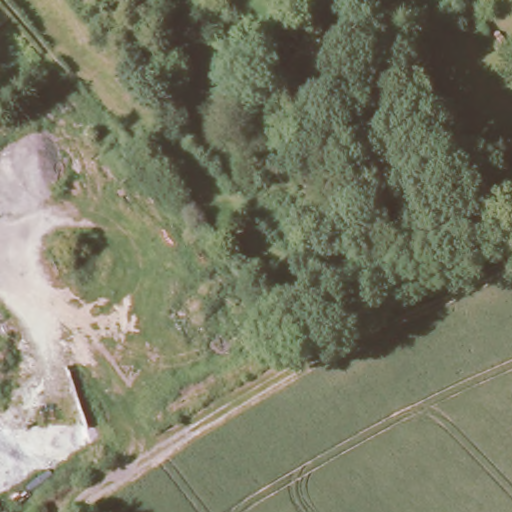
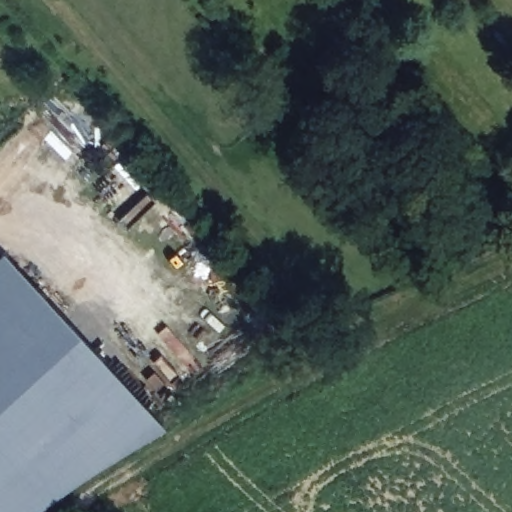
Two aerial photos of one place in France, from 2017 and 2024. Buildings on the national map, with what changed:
new [(0,258),(4,254),(165,430),(42,511),(40,512),(0,512),(0,258)]
unchanged [(42,512),(40,512),(42,511),(42,512)]

